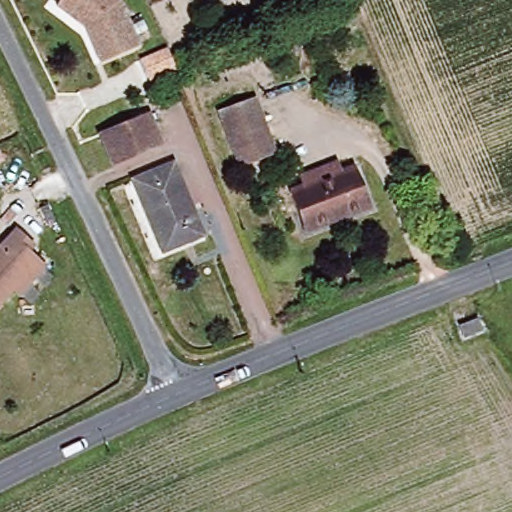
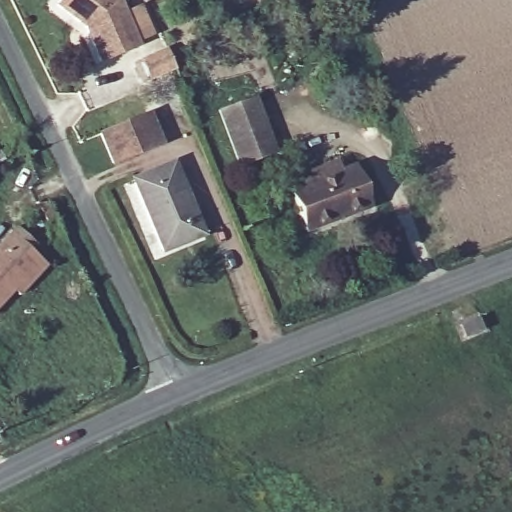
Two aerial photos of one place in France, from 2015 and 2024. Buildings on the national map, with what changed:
unchanged [(85,27),(56,6),(60,0),(120,0),(140,45),(100,63),(85,27)]
unchanged [(163,67),(139,77),(132,59),(155,49),(163,67)]
unchanged [(236,166),(216,110),(249,99),(270,155),(236,166)]
unchanged [(112,165),(99,135),(147,114),(161,145),(112,165)]
unchanged [(161,251),(133,180),(169,165),(198,237),(161,251)]
unchanged [(367,209),(306,234),(290,192),(305,186),(301,177),(335,165),(340,174),(353,169),(367,209)]
unchanged [(13,294),(7,288),(0,297),(0,237),(10,225),(24,238),(29,242),(23,249),(34,259),(40,264),(13,294)]
unchanged [(467,338),(463,328),(478,323),(482,332),(467,338)]

